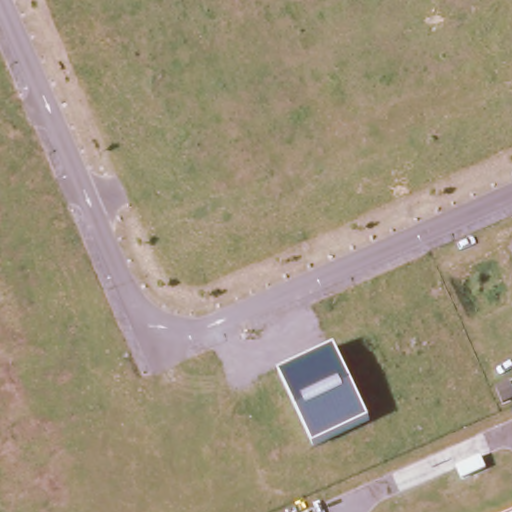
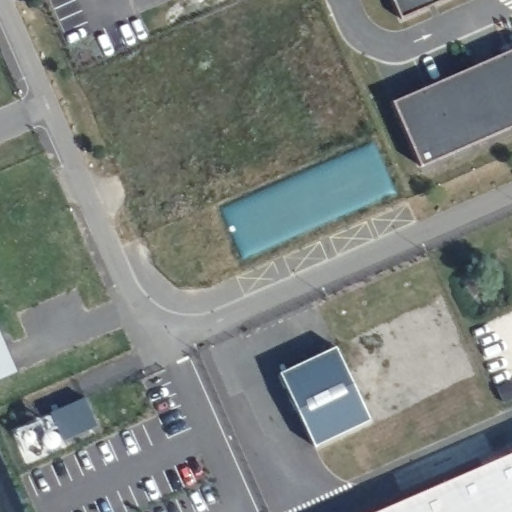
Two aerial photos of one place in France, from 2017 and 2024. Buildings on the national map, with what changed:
new [(408,22),(399,0),(464,0),(408,22)]
new [(512,133),(426,169),(400,105),(512,57),(512,133)]
new [(20,367),(0,377),(0,323),(20,367)]
unchanged [(281,374),(338,349),(371,424),(313,448),(281,374)]
new [(512,512),(380,512),(512,453),(512,512)]

